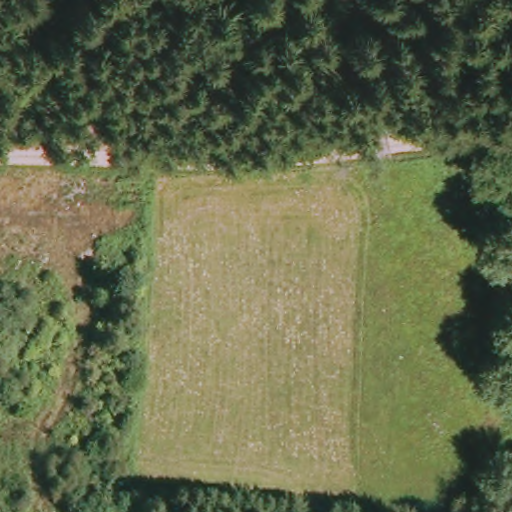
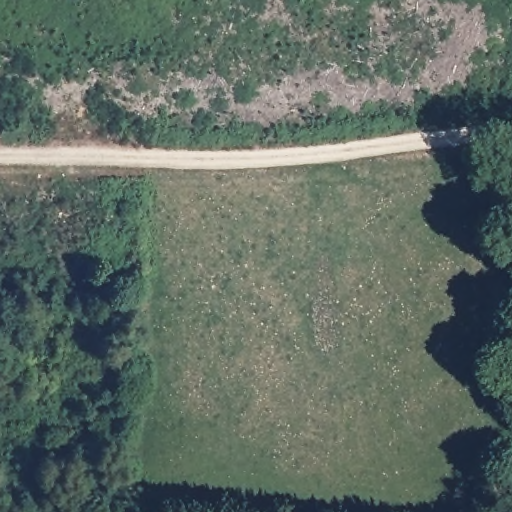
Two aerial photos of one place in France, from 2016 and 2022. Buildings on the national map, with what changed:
[]

